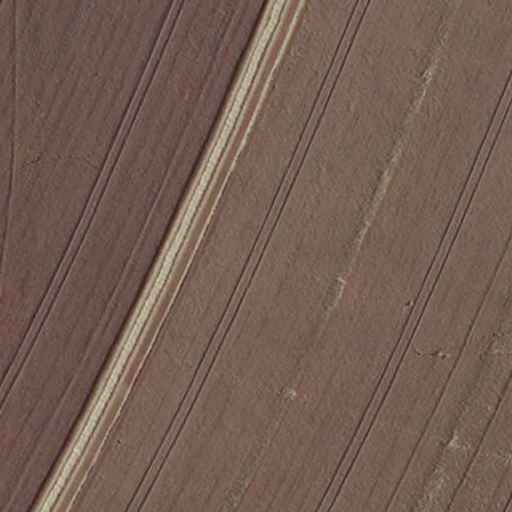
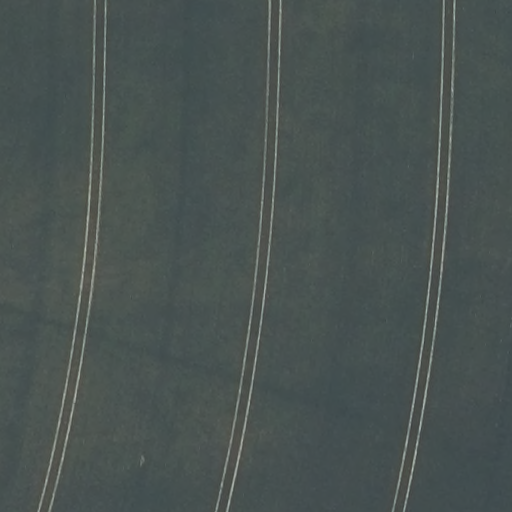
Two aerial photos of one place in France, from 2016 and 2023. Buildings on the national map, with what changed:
[]

